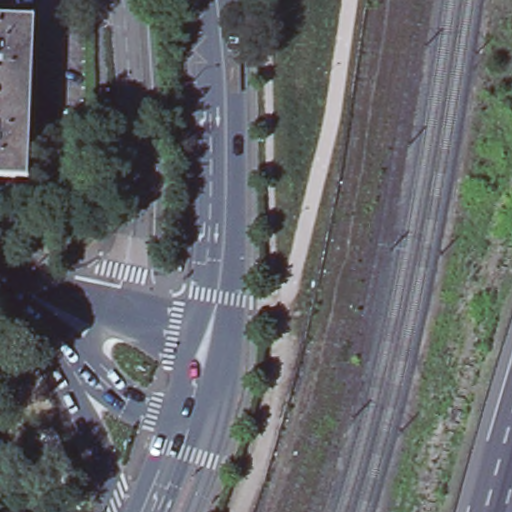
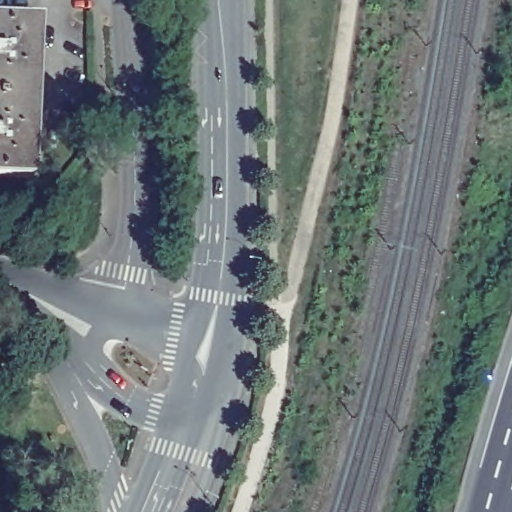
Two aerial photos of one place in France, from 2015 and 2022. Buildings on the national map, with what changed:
unchanged [(43,18),(33,178),(0,176),(0,17),(43,18)]

